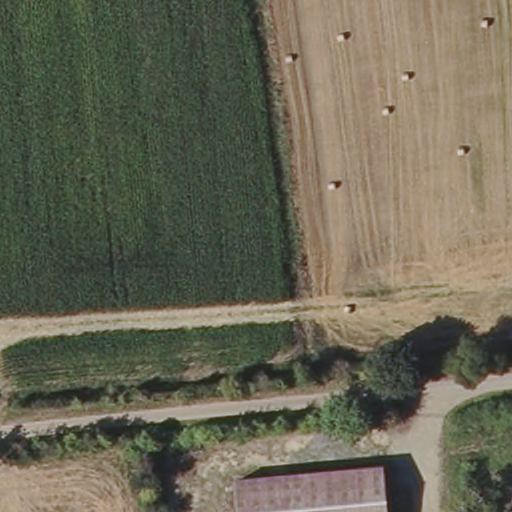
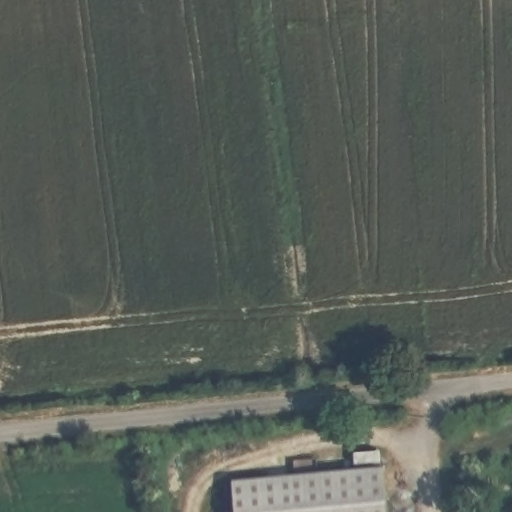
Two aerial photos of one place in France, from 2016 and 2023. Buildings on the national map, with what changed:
unchanged [(234,482),(385,468),(389,512),(237,512),(234,482)]

